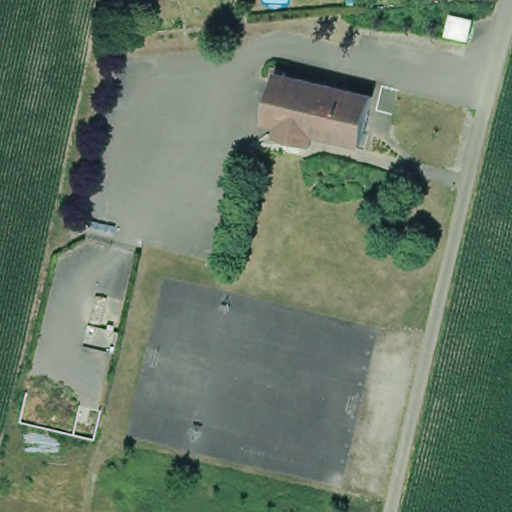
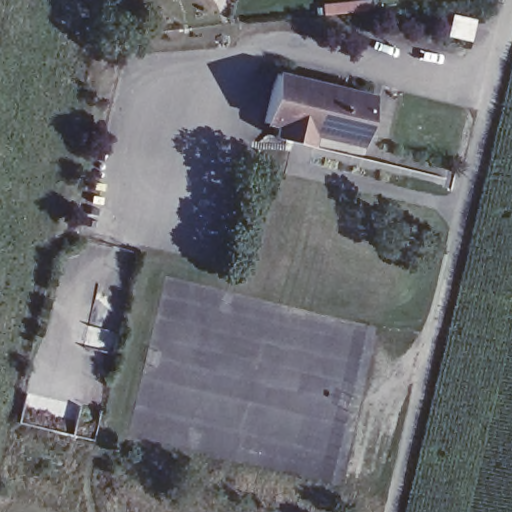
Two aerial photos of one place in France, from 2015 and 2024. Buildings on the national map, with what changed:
unchanged [(471,20),(467,39),(445,34),(450,15),(471,20)]
unchanged [(270,137),(273,124),(260,121),(271,72),(368,96),(357,145),(309,133),(307,146),(270,137)]

